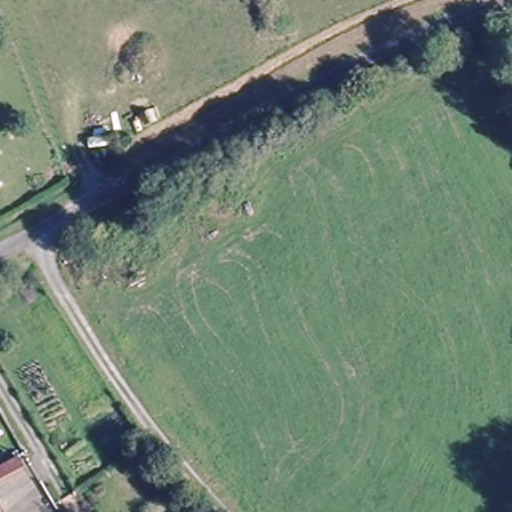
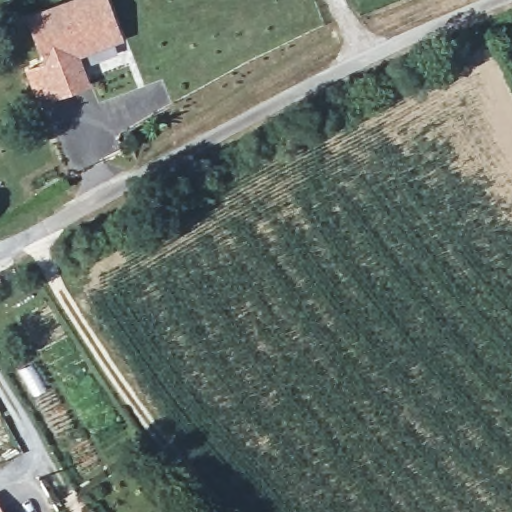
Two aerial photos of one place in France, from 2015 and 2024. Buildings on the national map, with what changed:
new [(79,56),(90,83),(36,103),(23,72),(44,63),(25,16),(67,0),(108,0),(123,38),(79,56)]
unchanged [(26,481),(0,494),(0,473),(17,464),(26,481)]

